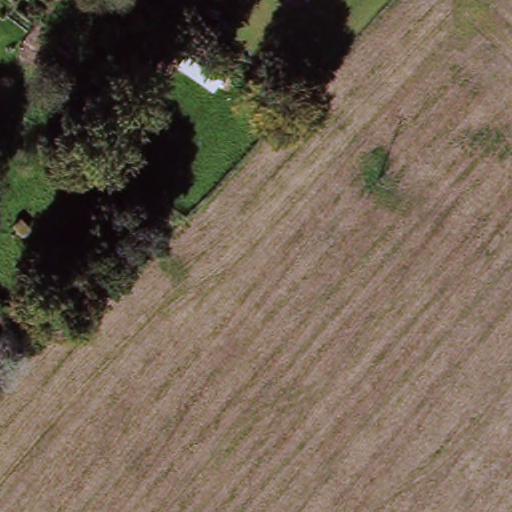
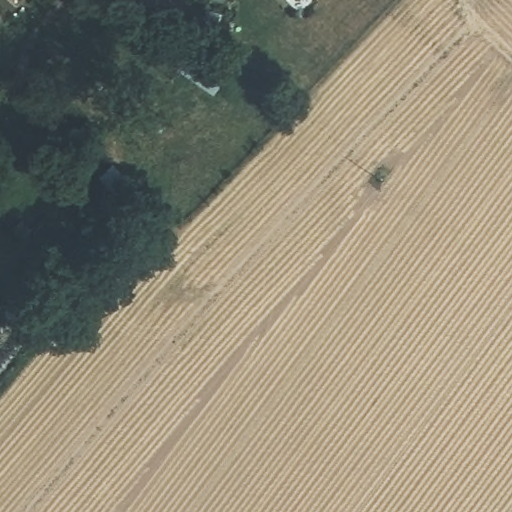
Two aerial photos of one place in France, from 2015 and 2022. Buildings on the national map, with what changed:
unchanged [(147,0),(148,0),(148,1),(147,0)]
unchanged [(215,21),(244,37),(235,53),(205,39),(215,21)]
unchanged [(217,97),(165,62),(182,38),(232,74),(217,97)]

